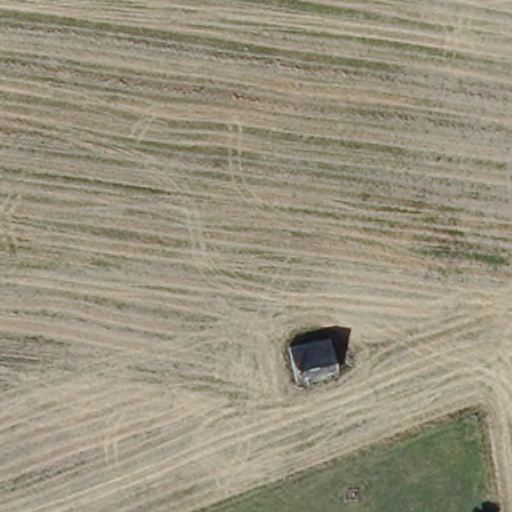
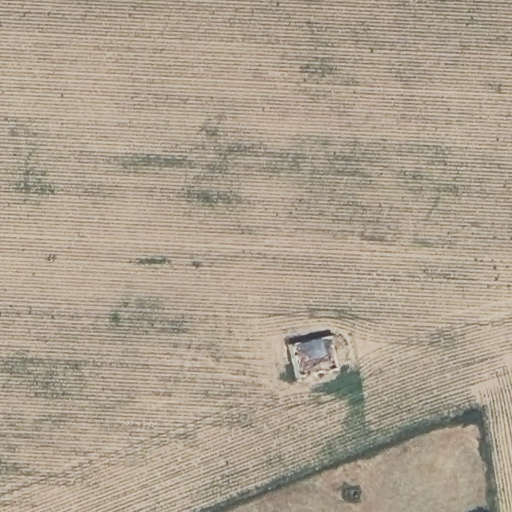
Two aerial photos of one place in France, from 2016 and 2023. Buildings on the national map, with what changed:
unchanged [(332,337),(339,370),(300,381),(292,347),(332,337)]

